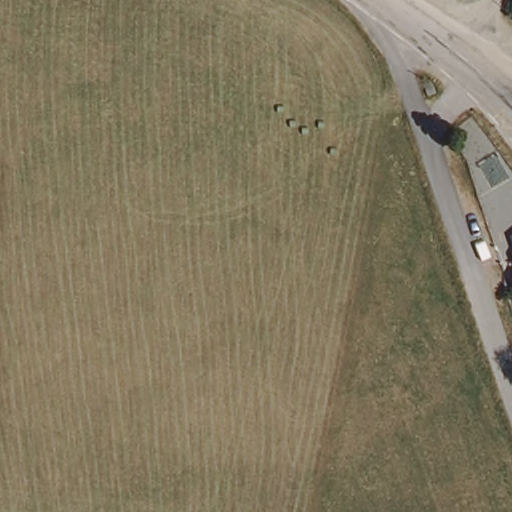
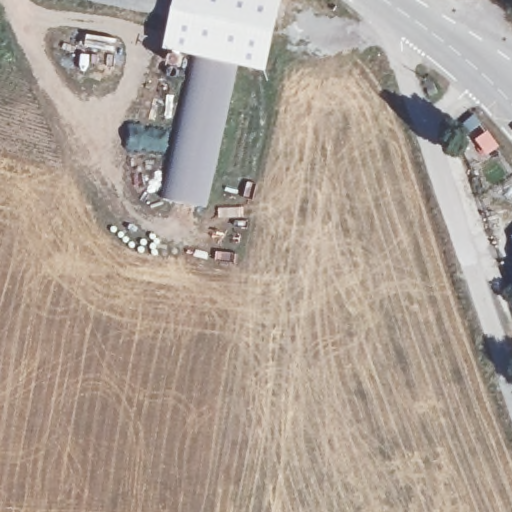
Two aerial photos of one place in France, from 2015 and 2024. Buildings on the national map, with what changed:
new [(171,13),(102,0),(175,0),(171,13)]
new [(262,67),(165,46),(171,13),(175,0),(276,0),(262,67)]
new [(192,52),(240,62),(208,210),(161,199),(192,52)]
unchanged [(512,234),(512,242),(510,235),(512,234)]

